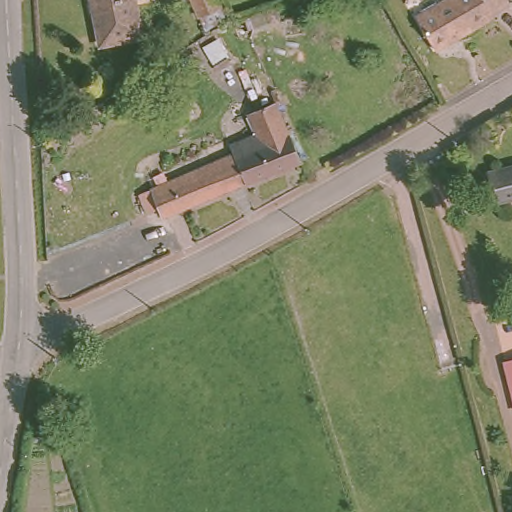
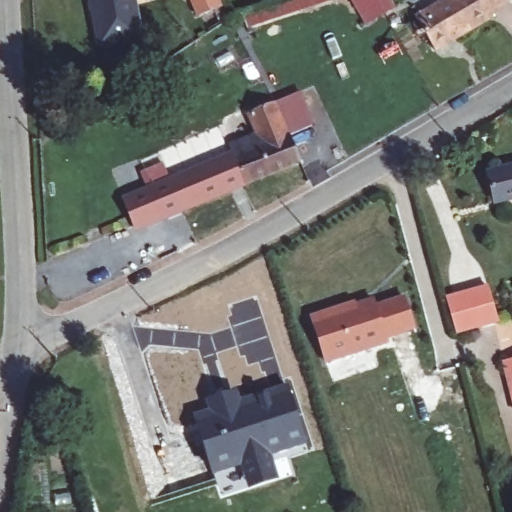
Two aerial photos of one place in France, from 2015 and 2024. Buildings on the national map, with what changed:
unchanged [(143,46),(103,52),(94,0),(135,0),(143,46)]
unchanged [(229,15),(210,24),(203,10),(199,11),(194,0),(222,0),(229,15)]
new [(342,1),(265,22),(250,29),(243,17),(288,0),(345,0),(342,1)]
new [(397,8),(366,25),(353,0),(392,0),(397,8)]
unchanged [(451,0),(512,0),(507,3),(510,9),(492,19),(495,22),(439,51),(420,16),(451,0)]
new [(300,91),(313,124),(295,133),(284,103),(300,91)]
unchanged [(242,155),(240,151),(268,139),(258,113),(275,106),(284,103),(307,163),(170,222),(167,213),(147,221),(142,209),(135,192),(155,185),(242,155)]
unchanged [(512,164),(512,196),(492,202),(484,172),(512,164)]
new [(501,322),(460,333),(462,339),(453,342),(440,296),(490,282),(501,322)]
new [(310,315),(355,300),(355,303),(374,297),(377,304),(405,296),(415,329),(387,339),(388,343),(325,363),(310,315)]
unchanged [(510,361),(512,361),(512,368),(510,361)]
new [(212,412),(207,399),(239,389),(242,399),(288,384),(305,437),(267,449),(277,480),(252,488),(242,465),(213,475),(196,420),(212,412)]

